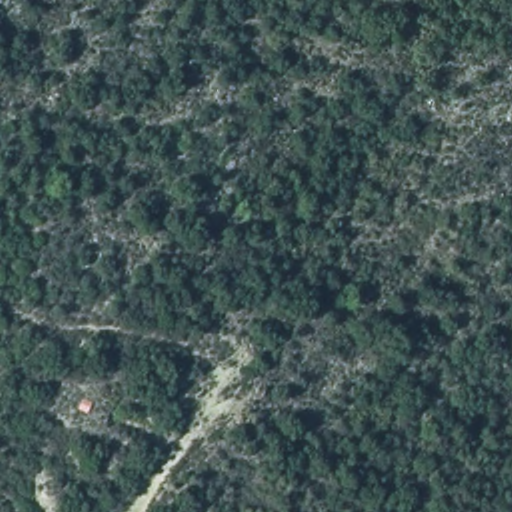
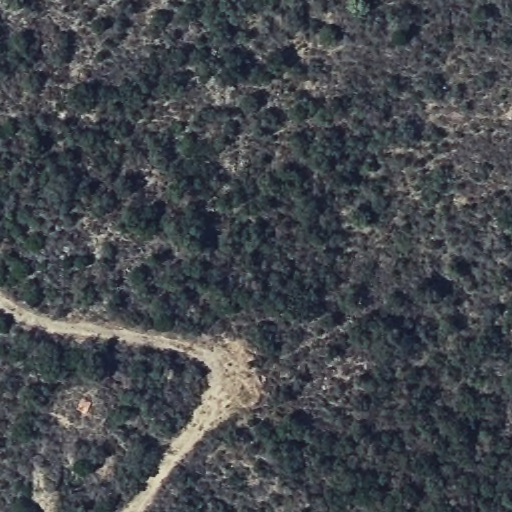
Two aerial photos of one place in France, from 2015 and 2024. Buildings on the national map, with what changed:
unchanged [(79,396),(92,401),(85,416),(74,408),(79,396)]

